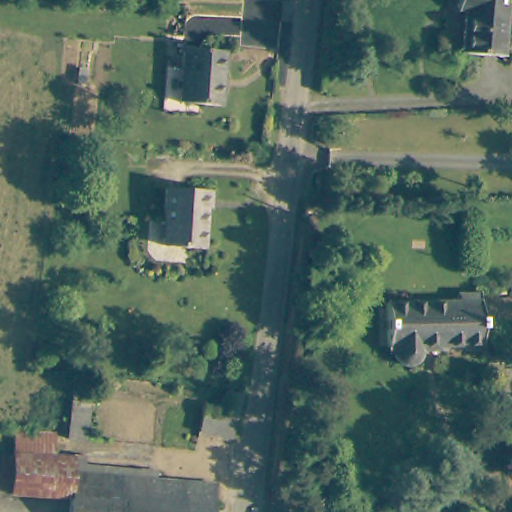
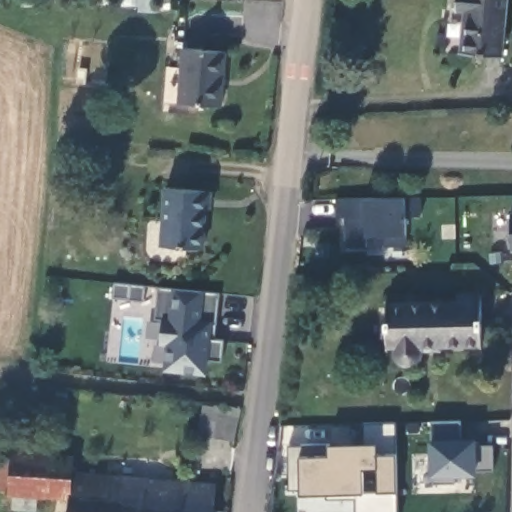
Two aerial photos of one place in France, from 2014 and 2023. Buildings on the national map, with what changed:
unchanged [(473,0),(512,0),(512,51),(480,48),(483,7),(472,6),(473,0)]
unchanged [(197,40),(241,44),(235,102),(191,98),(197,40)]
unchanged [(172,185),(222,188),(221,204),(215,203),(212,244),(168,241),(172,185)]
new [(403,218),(406,236),(407,246),(387,246),(388,236),(367,236),(367,246),(345,247),(344,216),(339,217),(338,198),(363,198),(406,197),(420,196),(421,217),(403,218)]
new [(510,249),(504,212),(512,212),(512,249),(510,249)]
new [(216,339),(225,341),(222,362),(207,360),(207,374),(163,371),(165,344),(157,344),(161,318),(156,318),(160,286),(221,291),(216,339)]
unchanged [(428,338),(428,342),(427,346),(425,349),(422,351),(418,353),(415,354),(411,353),(407,352),(405,350),(402,348),(400,345),(399,341),(399,337),(394,337),(395,294),(468,296),(468,288),(491,289),(490,339),(428,338)]
unchanged [(227,412),(231,400),(245,403),(237,436),(208,430),(206,429),(210,408),(214,409),(227,412)]
new [(467,439),(475,439),(476,444),(495,444),(495,469),(476,470),(476,475),(457,476),(457,483),(435,484),(433,475),(430,475),(428,440),(433,439),(431,422),(465,420),(467,439)]
new [(398,491),(400,512),(356,512),(356,499),(329,499),(332,493),(301,494),(299,456),(292,446),(327,448),(327,443),(366,443),(364,423),(397,422),(397,454),(398,491)]
unchanged [(33,455),(79,458),(78,472),(76,496),(15,492),(18,454),(33,455)]
unchanged [(75,512),(76,496),(78,472),(218,483),(216,509),(227,510),(227,512),(75,512)]

